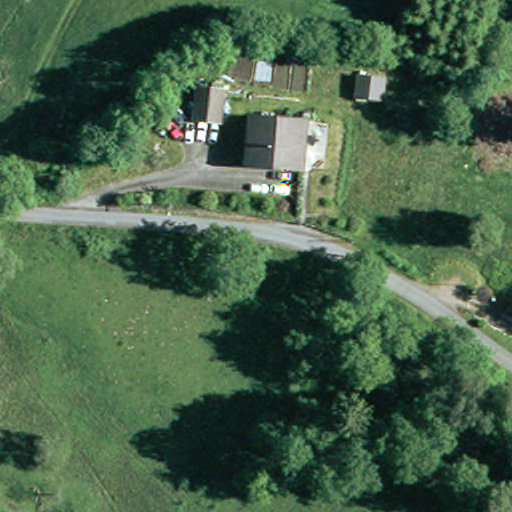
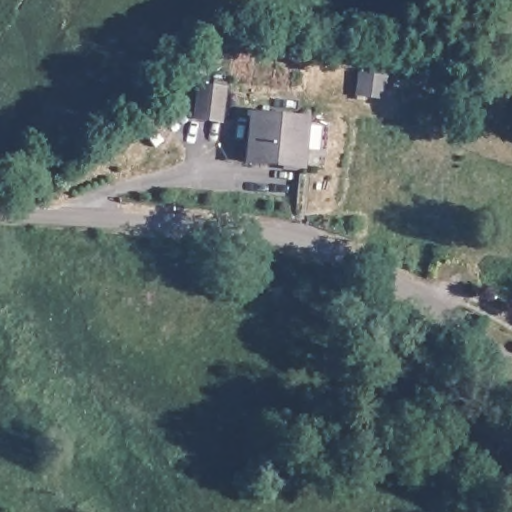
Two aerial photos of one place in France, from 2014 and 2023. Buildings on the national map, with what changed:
unchanged [(357,75),(373,77),(382,78),(380,98),(371,97),(355,95),(357,75)]
unchanged [(214,82),(227,84),(223,121),(196,118),(199,86),(213,87),(214,82)]
unchanged [(255,114),(306,119),(302,164),(251,159),(255,114)]

